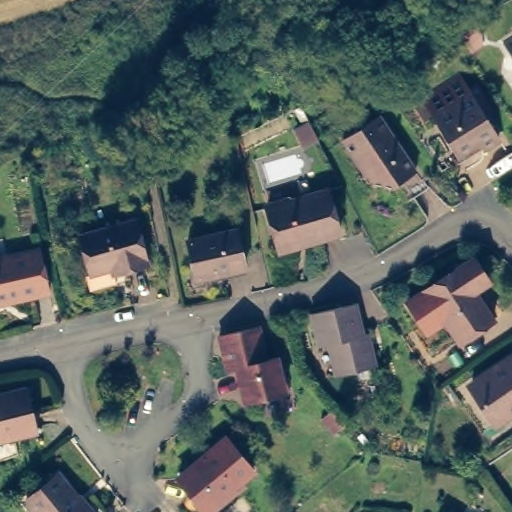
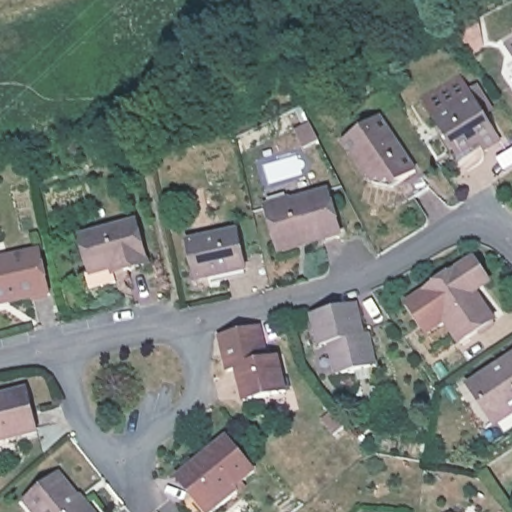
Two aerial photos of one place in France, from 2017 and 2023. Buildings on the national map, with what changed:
unchanged [(472,54),(467,46),(455,30),(478,19),(482,38),(485,46),(472,54)]
unchanged [(512,32),(512,57),(501,39),(512,32)]
unchanged [(501,138),(484,149),(478,142),(458,154),(438,123),(432,114),(447,105),(452,114),(476,99),(501,138)]
unchanged [(408,164),(421,178),(404,190),(389,175),(385,179),(365,175),(336,131),(371,108),(408,164)]
unchanged [(320,141),(305,149),(297,133),(311,125),(320,141)]
unchanged [(280,237),(270,200),(329,183),(341,226),(314,234),(282,244),(280,237)]
unchanged [(117,268),(91,275),(87,260),(92,259),(81,223),(136,208),(148,252),(126,258),(115,261),(117,268)]
unchanged [(246,265),(198,276),(189,238),(237,227),(246,265)]
unchanged [(40,243),(50,287),(13,294),(0,296),(0,250),(40,243)]
unchanged [(486,279),(480,283),(472,288),(491,316),(457,339),(422,288),(456,264),(470,254),(486,279)]
unchanged [(356,295),(362,325),(369,324),(376,357),(336,365),(329,335),(319,338),(312,304),(356,295)]
unchanged [(259,354),(269,351),(278,386),(238,396),(229,363),(220,366),(211,330),(250,320),(259,354)]
unchanged [(470,378),(512,349),(512,402),(494,414),(470,378)]
unchanged [(38,429),(0,437),(0,392),(27,385),(38,429)]
unchanged [(335,409),(348,426),(336,435),(323,419),(335,409)]
unchanged [(213,511),(209,507),(182,473),(229,434),(256,468),(235,486),(238,489),(213,511)]
unchanged [(93,512),(39,512),(27,497),(60,471),(93,512)]
unchanged [(457,512),(455,512),(456,511),(457,512)]

